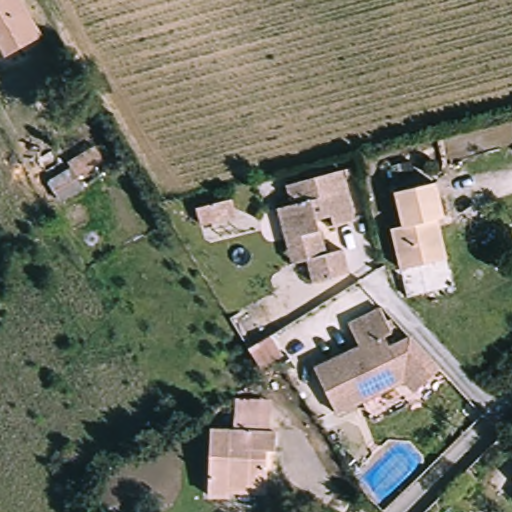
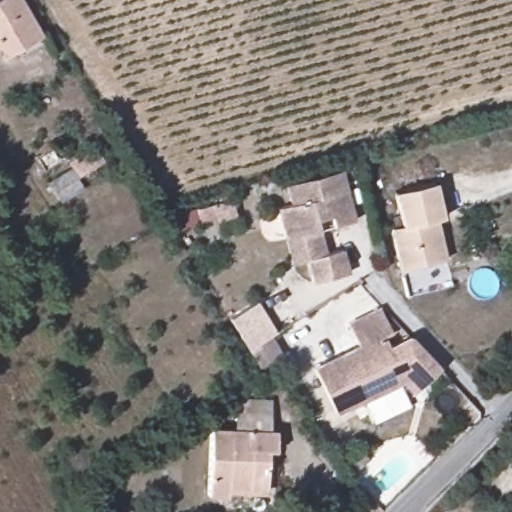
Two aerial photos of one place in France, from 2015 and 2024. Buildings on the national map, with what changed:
unchanged [(38,28),(43,35),(20,48),(5,56),(0,49),(0,0),(22,0),(38,28)]
unchanged [(325,259),(342,254),(349,278),(313,288),(307,265),(291,269),(278,213),(291,209),(286,190),(341,175),(355,226),(333,232),(330,221),(316,225),(325,259)]
unchanged [(445,254),(439,256),(400,264),(391,223),(402,220),(394,187),(435,177),(443,213),(437,214),(446,254),(445,254)]
unchanged [(236,216),(200,225),(196,208),(231,199),(236,216)]
unchanged [(438,373),(413,397),(402,386),(335,418),(313,373),(360,350),(349,328),(380,313),(391,337),(384,341),(389,351),(409,341),(438,373)]
unchanged [(280,355),(276,358),(259,367),(248,349),(268,336),(280,355)]
unchanged [(236,397),(271,397),(270,427),(236,426),(236,397)]
unchanged [(266,485),(228,483),(228,491),(208,490),(210,425),(236,426),(270,427),(276,427),(275,446),(266,445),(266,485)]

